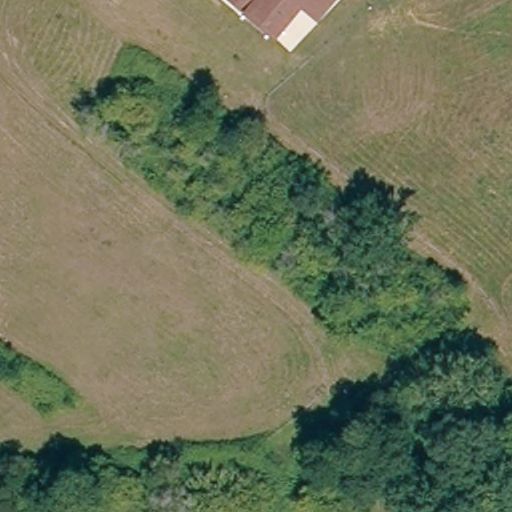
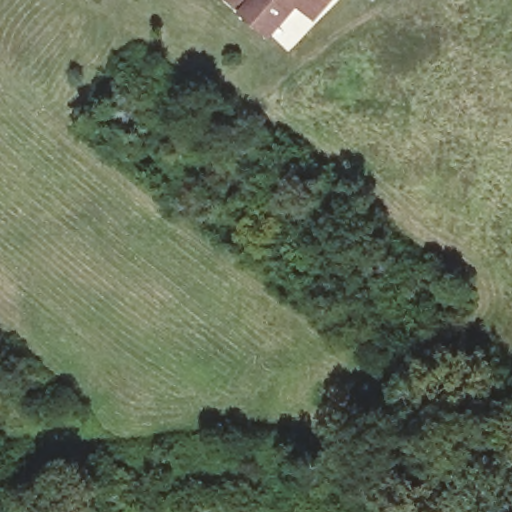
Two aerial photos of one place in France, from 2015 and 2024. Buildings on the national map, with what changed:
unchanged [(308,5),(285,36),(250,9),(239,0),(339,0),(325,18),(308,5)]

